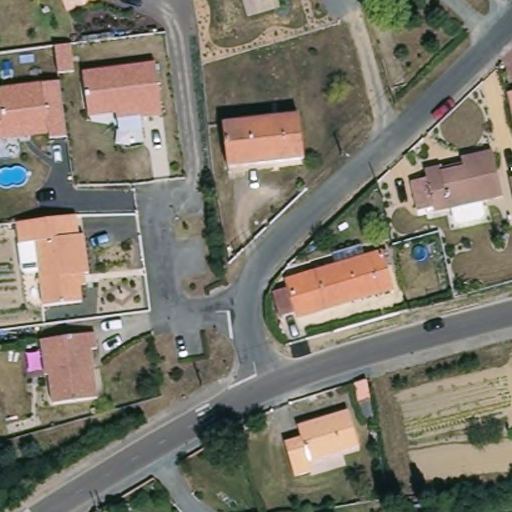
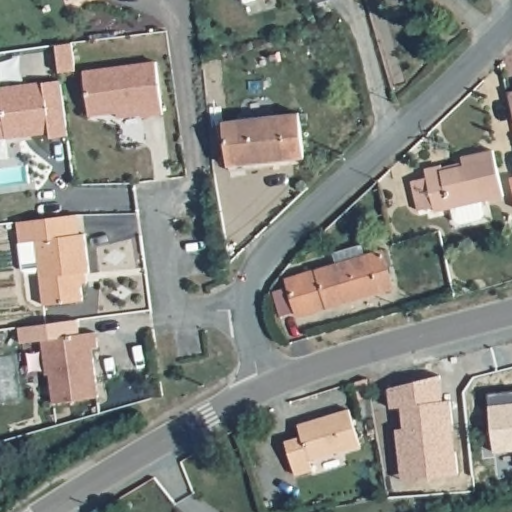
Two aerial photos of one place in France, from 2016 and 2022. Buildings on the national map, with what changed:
unchanged [(66,0),(75,0),(67,3),(66,0)]
unchanged [(117,111),(90,114),(84,71),(157,61),(164,112),(142,115),(142,113),(119,116),(117,111)]
unchanged [(51,137),(50,131),(0,138),(0,88),(61,80),(69,135),(51,137)]
unchanged [(228,122),(303,113),(308,158),(233,166),(228,122)]
unchanged [(507,196),(485,201),(488,214),(485,219),(483,220),(463,224),(459,221),(456,208),(439,211),(437,206),(422,210),(415,181),(432,177),(430,169),(445,165),(446,170),(468,165),(466,157),(497,150),(507,196)]
unchanged [(510,177),(512,177),(512,186),(510,177)]
unchanged [(53,216),(56,236),(86,232),(91,270),(81,271),(85,299),(46,304),(37,240),(22,242),(19,221),(53,216)]
unchanged [(276,289),(292,284),(291,279),(341,264),(337,253),(366,244),(370,256),(391,249),(395,265),(391,266),(397,288),(302,316),(285,320),(276,289)]
unchanged [(101,396),(56,402),(52,373),(49,373),(44,338),(98,331),(100,346),(94,347),(101,396)]
new [(400,464),(397,429),(404,428),(402,408),(391,409),(388,389),(440,375),(442,400),(450,400),(452,423),(456,452),(458,474),(419,479),(402,480),(400,464)]
unchanged [(355,382),(367,379),(374,415),(362,418),(355,382)]
new [(512,391),(512,451),(493,453),(487,394),(512,391)]
unchanged [(290,441),(306,436),(302,425),(353,410),(364,445),(315,460),(317,470),(300,475),(290,441)]

